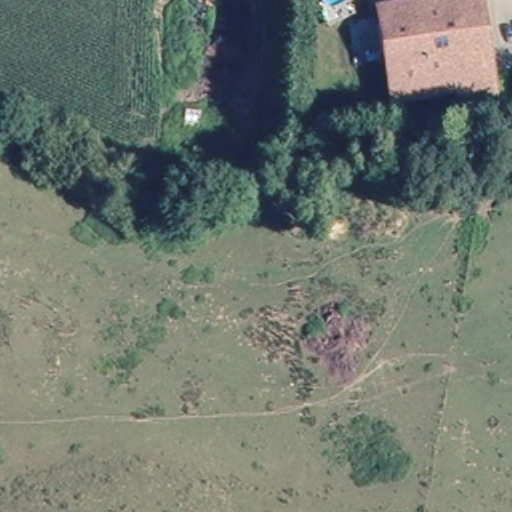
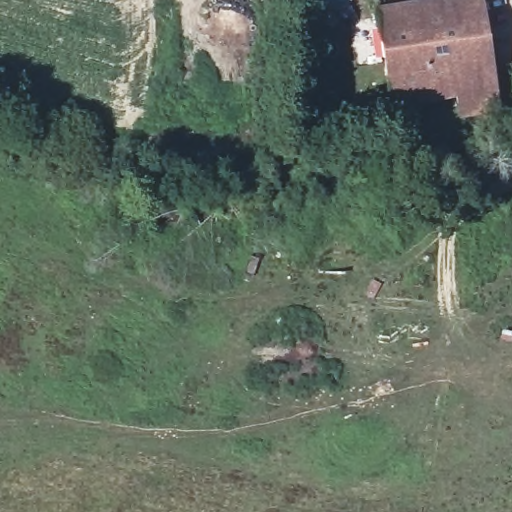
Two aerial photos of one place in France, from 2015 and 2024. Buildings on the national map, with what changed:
unchanged [(382,0),(392,0),(382,1),(382,0)]
unchanged [(485,0),(490,117),(454,120),(453,92),(387,94),(382,1),(392,0),(485,0)]

